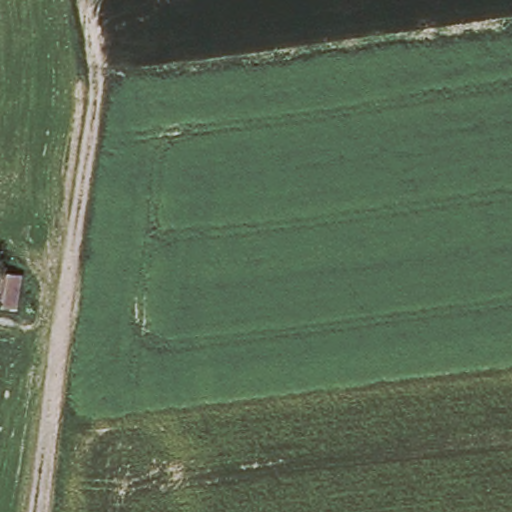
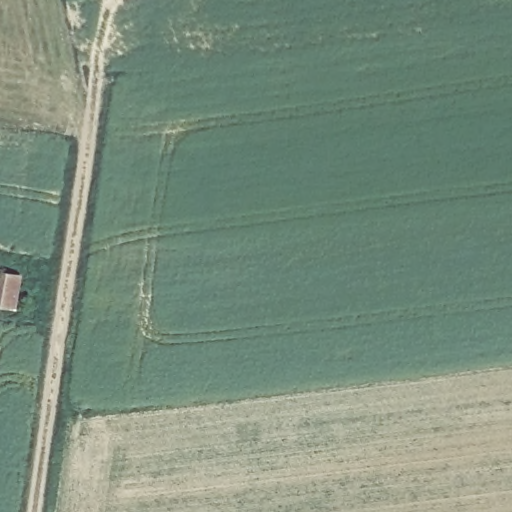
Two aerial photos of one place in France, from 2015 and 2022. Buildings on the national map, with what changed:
unchanged [(16,258),(8,282),(0,280),(0,254),(16,258)]

